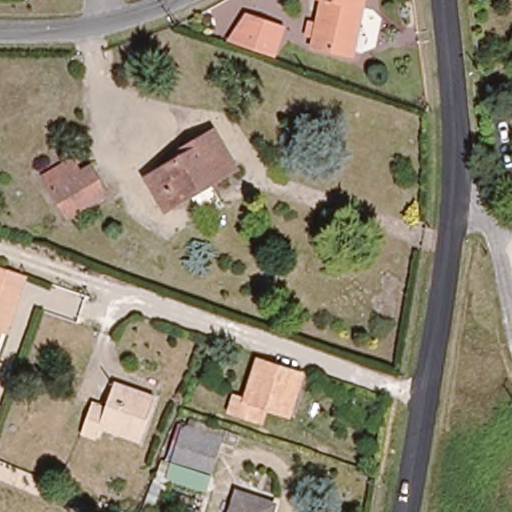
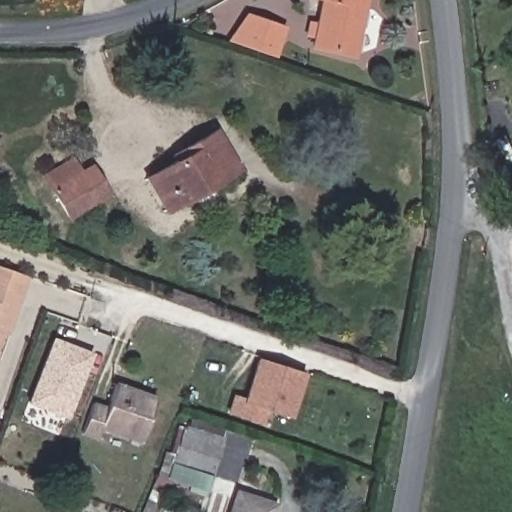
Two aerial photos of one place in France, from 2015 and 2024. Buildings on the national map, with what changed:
unchanged [(317,24),(322,0),(364,0),(352,55),(312,47),(314,38),(306,35),(309,23),(317,24)]
unchanged [(247,45),(227,39),(242,14),(279,25),(270,54),(247,45)]
unchanged [(173,155),(216,131),(239,170),(165,213),(145,179),(176,161),(173,155)]
unchanged [(0,146),(0,140),(3,141),(0,146)]
unchanged [(86,168),(102,195),(64,218),(41,177),(68,161),(76,174),(86,168)]
unchanged [(0,338),(0,266),(29,277),(17,310),(9,334),(2,332),(0,338)]
new [(68,419),(27,404),(53,337),(94,353),(68,419)]
unchanged [(247,398),(259,359),(302,372),(290,411),(267,404),(263,418),(232,408),(236,394),(247,398)]
unchanged [(161,394),(146,437),(106,423),(103,433),(88,428),(98,399),(104,382),(119,387),(121,381),(161,394)]
unchanged [(171,459),(181,426),(215,436),(205,469),(171,459)]
unchanged [(33,434),(45,438),(36,463),(25,459),(33,434)]
unchanged [(239,494),(274,506),(272,512),(233,512),(239,494)]

